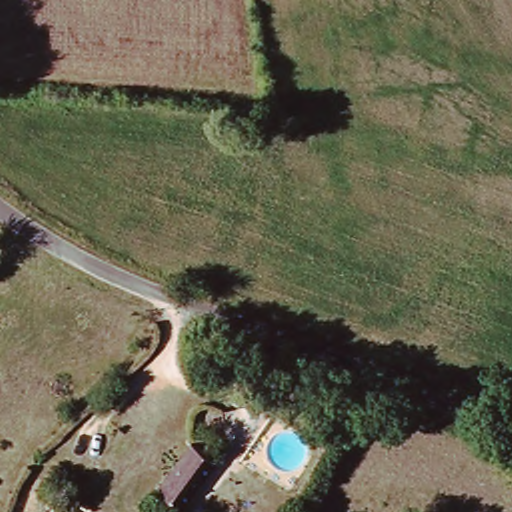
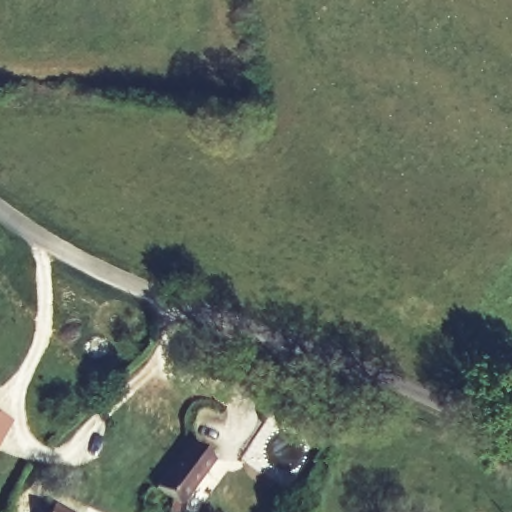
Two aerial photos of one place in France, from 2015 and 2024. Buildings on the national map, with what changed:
new [(11,422),(0,442),(0,415),(11,422)]
unchanged [(193,449),(217,467),(183,512),(182,512),(159,495),(193,449)]
unchanged [(55,512),(41,512),(44,506),(55,512)]

